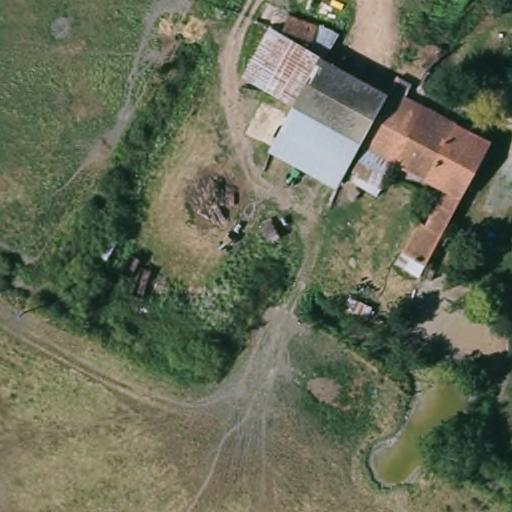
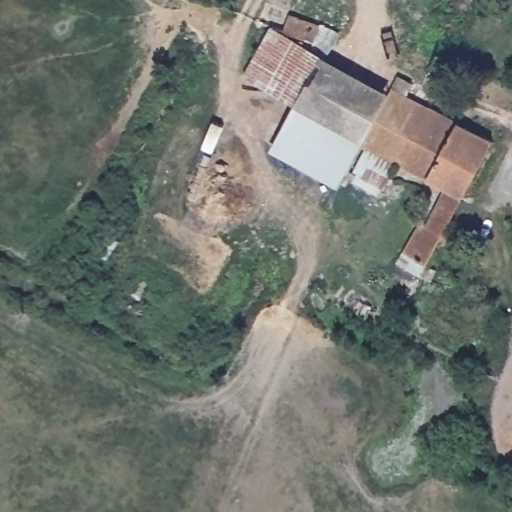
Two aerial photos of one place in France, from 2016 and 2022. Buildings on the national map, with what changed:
unchanged [(429,179),(393,166),(374,190),(349,177),(342,185),(273,155),(300,107),(252,73),(274,31),(280,12),(339,32),(328,54),(392,91),(399,76),(411,81),(409,96),(454,121),(429,179)]
unchanged [(503,148),(428,268),(406,257),(421,225),(432,227),(447,191),(429,179),(454,121),(503,148)]

